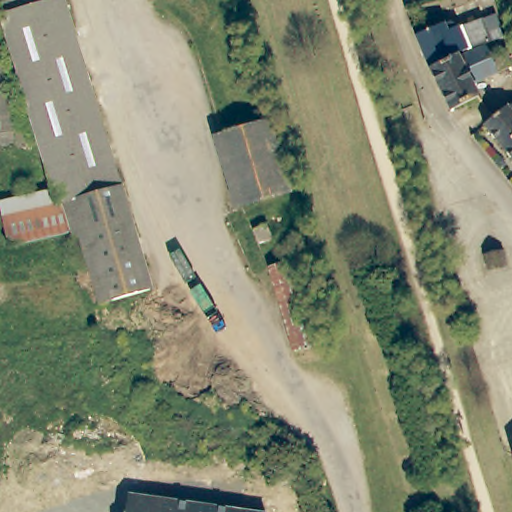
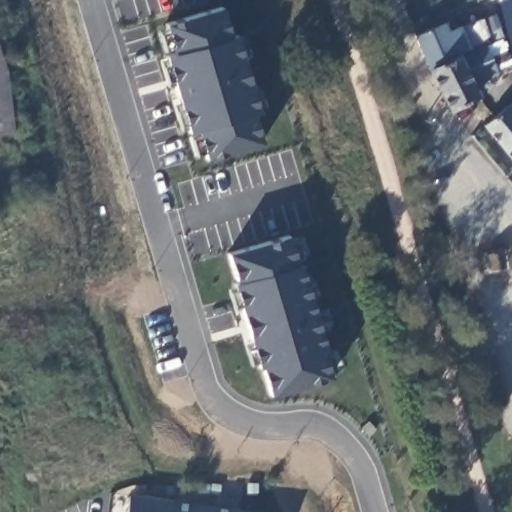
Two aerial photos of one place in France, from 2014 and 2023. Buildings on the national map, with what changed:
demolished [(73,239),(71,233),(63,205),(58,207),(52,189),(0,18),(0,0),(63,0),(151,289),(102,302),(82,235),(73,239)]
unchanged [(499,0),(512,0),(512,50),(499,0)]
new [(229,36),(234,34),(258,112),(252,115),(261,143),(205,160),(195,129),(187,132),(164,54),(171,53),(164,26),(221,8),(229,36)]
unchanged [(449,19),(456,24),(479,15),(488,39),(469,46),(467,49),(457,54),(429,68),(415,34),(414,34),(449,19)]
unchanged [(486,45),(490,54),(506,48),(512,61),(512,64),(478,80),(484,91),(478,94),(478,95),(448,109),(429,68),(457,54),(458,56),(486,45)]
unchanged [(15,131),(0,133),(0,49),(8,70),(15,131)]
unchanged [(477,131),(503,111),(512,109),(512,171),(477,131)]
demolished [(261,124),(282,194),(243,206),(221,136),(261,124)]
demolished [(266,224),(271,238),(258,243),(253,230),(266,224)]
new [(270,394),(225,255),(288,235),(331,378),(270,394)]
new [(505,253),(507,269),(492,270),(490,255),(505,253)]
demolished [(269,267),(296,259),(320,344),(293,352),(269,267)]
unchanged [(133,500),(215,512),(132,512),(133,500)]

